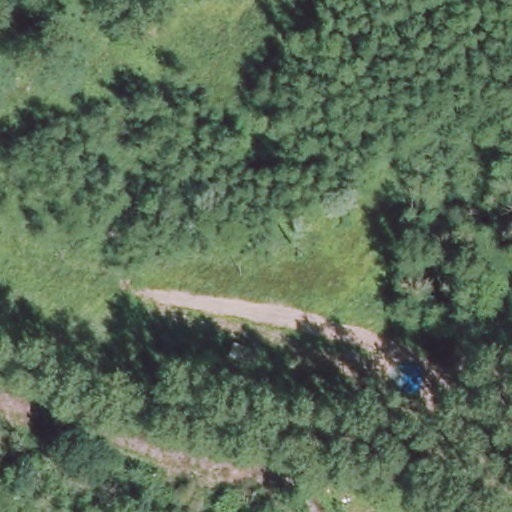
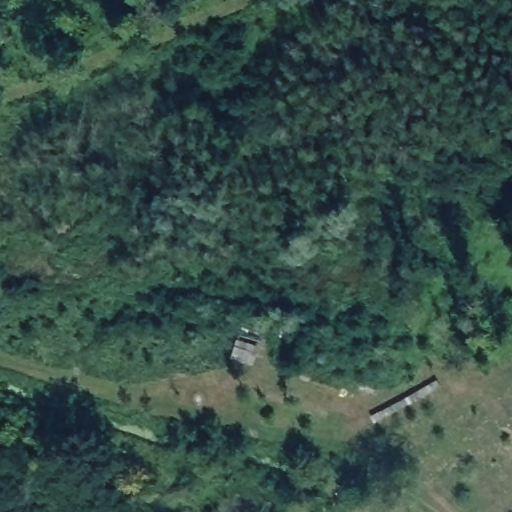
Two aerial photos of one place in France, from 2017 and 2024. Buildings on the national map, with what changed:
[]

